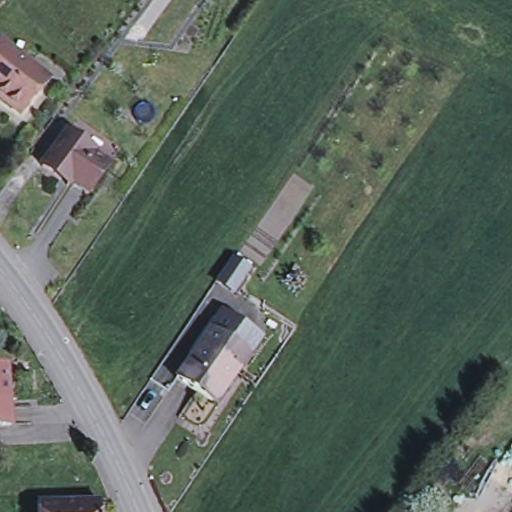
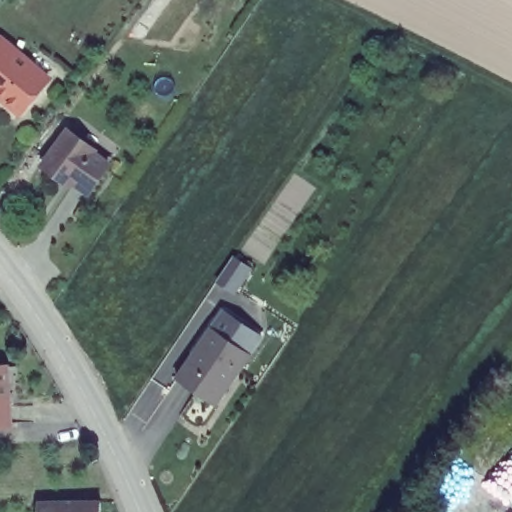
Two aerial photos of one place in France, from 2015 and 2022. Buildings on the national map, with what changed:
unchanged [(27,108),(0,88),(0,40),(4,35),(54,71),(27,108)]
unchanged [(95,146),(92,150),(110,163),(89,191),(72,178),(67,183),(42,165),(69,128),(95,146)]
unchanged [(250,266),(233,290),(216,278),(232,254),(250,266)]
unchanged [(251,362),(237,383),(232,379),(211,410),(177,386),(212,336),(222,320),(237,329),(257,343),(262,347),(251,362)]
unchanged [(13,424),(0,424),(0,363),(8,363),(13,424)]
unchanged [(95,505),(95,512),(35,512),(35,505),(95,505)]

